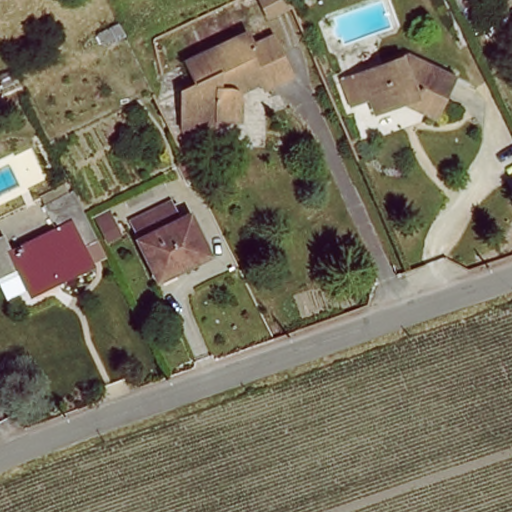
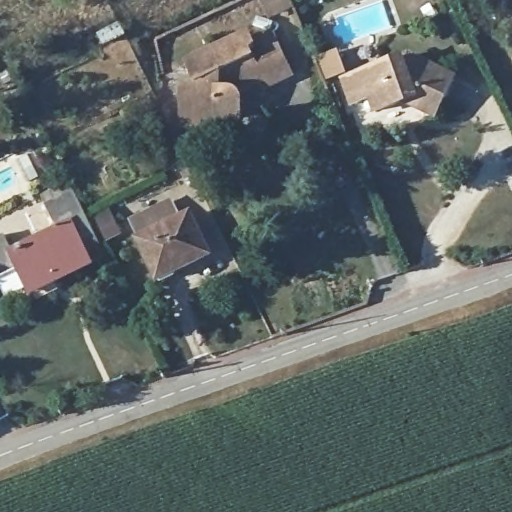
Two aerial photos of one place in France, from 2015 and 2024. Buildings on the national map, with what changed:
unchanged [(269,21),(260,0),(296,0),(299,8),(269,21)]
unchanged [(185,110),(188,76),(199,73),(190,52),(200,48),(251,28),(253,37),(273,30),(291,70),(264,81),(258,70),(236,80),(241,90),(240,112),(231,112),(185,110)]
unchanged [(366,96),(355,101),(344,76),(357,72),(364,69),(408,54),(454,77),(432,122),(417,113),(411,101),(382,111),(374,114),(366,96)]
unchanged [(12,252),(52,231),(46,217),(80,200),(99,237),(84,245),(93,262),(33,293),(21,272),(0,282),(0,240),(4,237),(12,252)]
unchanged [(139,239),(190,215),(208,252),(158,278),(139,239)]

